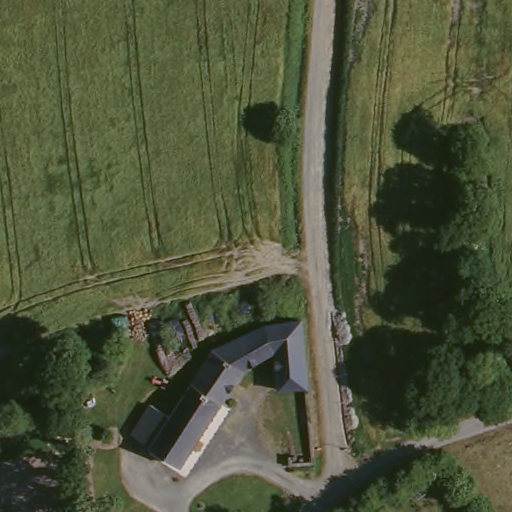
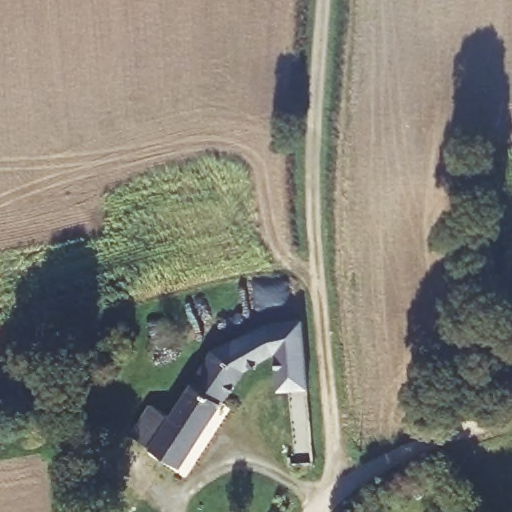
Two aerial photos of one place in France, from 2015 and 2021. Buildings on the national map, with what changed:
unchanged [(218,348),(267,324),(278,322),(305,319),(312,387),(282,390),(281,355),(247,372),(227,402),(209,391),(196,381),(218,348)]
unchanged [(187,465),(137,435),(155,405),(175,417),(196,381),(209,391),(227,402),(187,465)]

